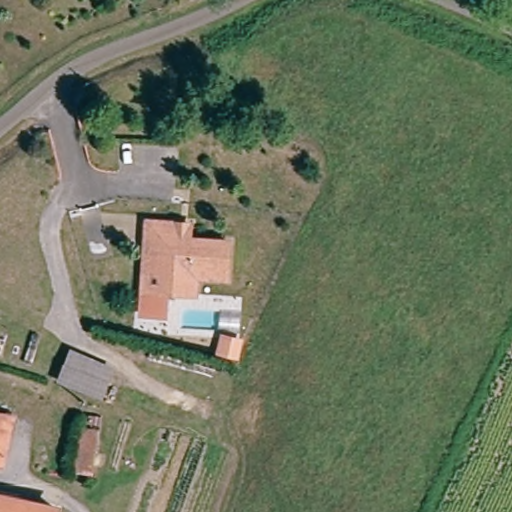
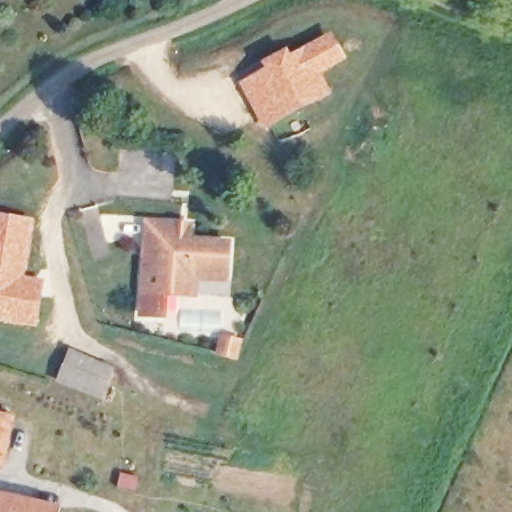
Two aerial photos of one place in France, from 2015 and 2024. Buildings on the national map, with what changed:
new [(262,69),(259,61),(287,47),(290,53),(332,31),(346,60),(321,73),(332,93),(262,130),(237,82),(262,69)]
new [(35,219),(26,276),(46,278),(37,329),(0,322),(0,213),(35,219)]
unchanged [(155,280),(141,280),(145,224),(175,226),(192,227),(191,244),(231,247),(229,288),(195,286),(195,303),(167,301),(153,301),(155,280)]
unchanged [(54,359),(101,376),(92,404),(46,388),(54,359)]
unchanged [(1,467),(0,467),(0,418),(14,422),(1,467)]
demolished [(89,437),(81,484),(61,483),(74,436),(89,437)]
unchanged [(24,512),(0,512),(0,507),(24,512)]

